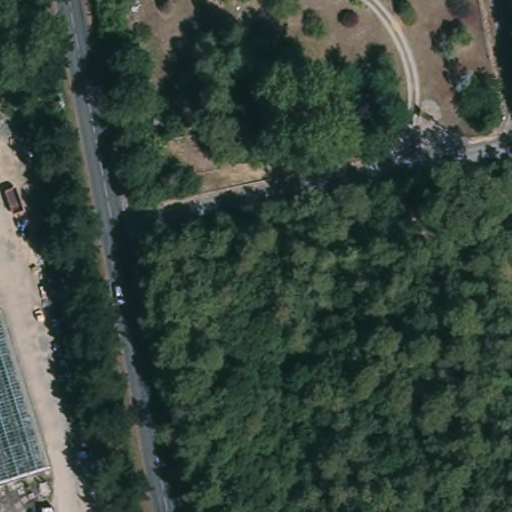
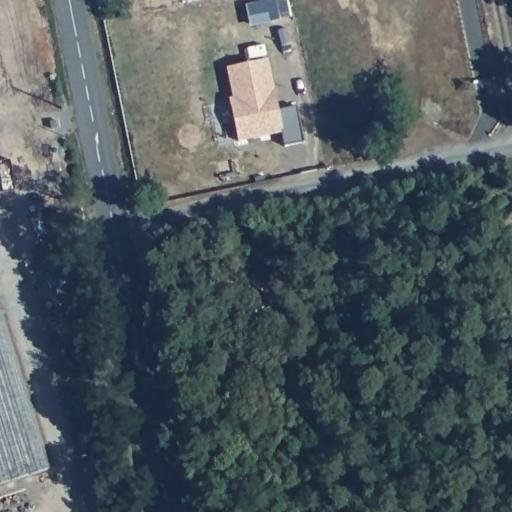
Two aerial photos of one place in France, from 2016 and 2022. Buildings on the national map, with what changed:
new [(267,60),(277,111),(296,107),(303,143),(283,147),(281,133),(237,142),(229,99),(232,98),(226,68),(267,60)]
unchanged [(55,470),(0,485),(0,275),(55,470)]

